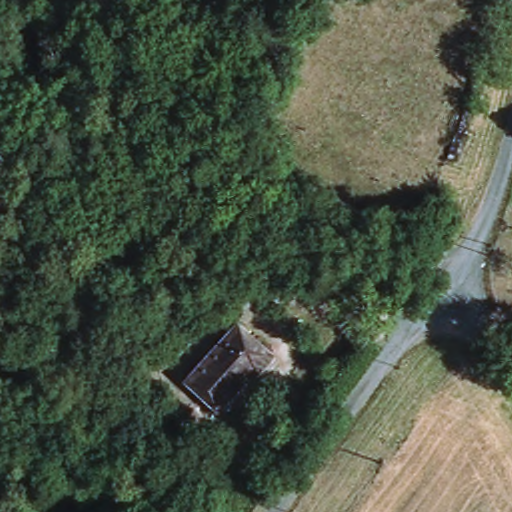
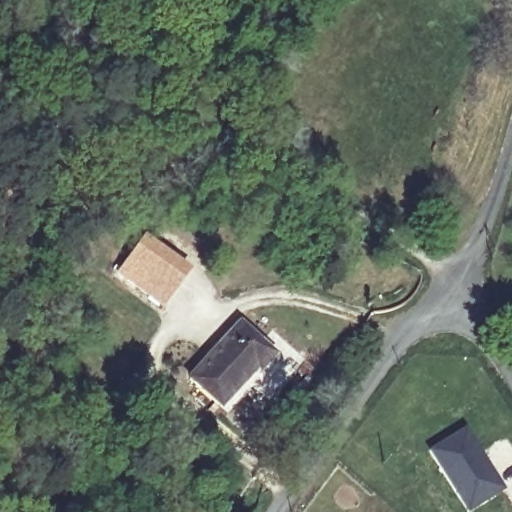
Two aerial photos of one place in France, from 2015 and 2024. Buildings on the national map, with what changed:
new [(117,276),(145,234),(190,269),(162,305),(117,276)]
unchanged [(221,403),(195,379),(237,330),(264,354),(221,403)]
new [(465,428),(504,491),(469,512),(464,512),(427,451),(465,428)]

